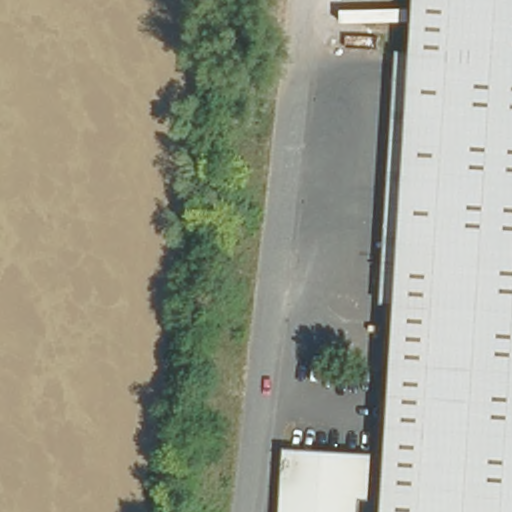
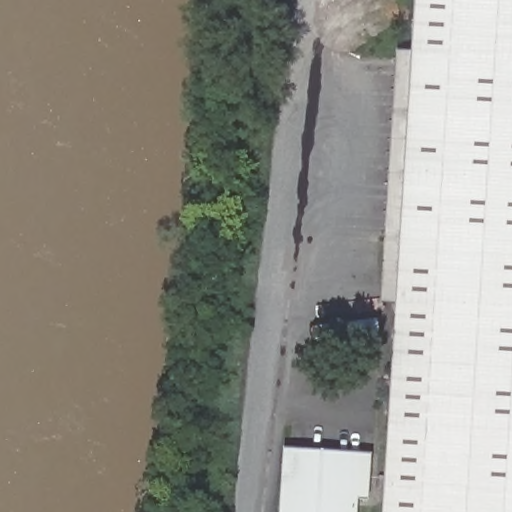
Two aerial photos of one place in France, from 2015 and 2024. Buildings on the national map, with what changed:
unchanged [(512,512),(381,512),(413,0),(512,0),(512,512)]
unchanged [(370,453),(368,497),(348,496),(348,512),(281,512),(284,448),(370,453)]

